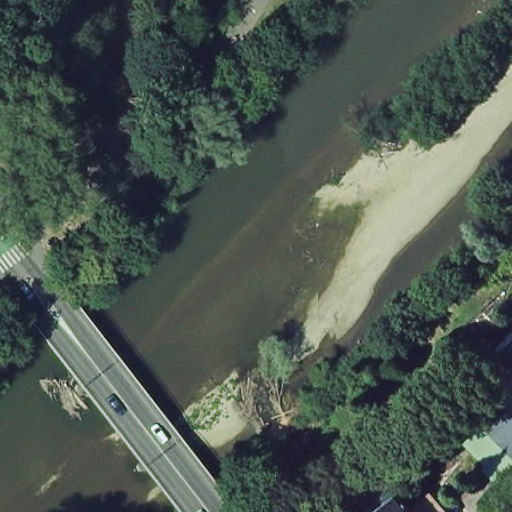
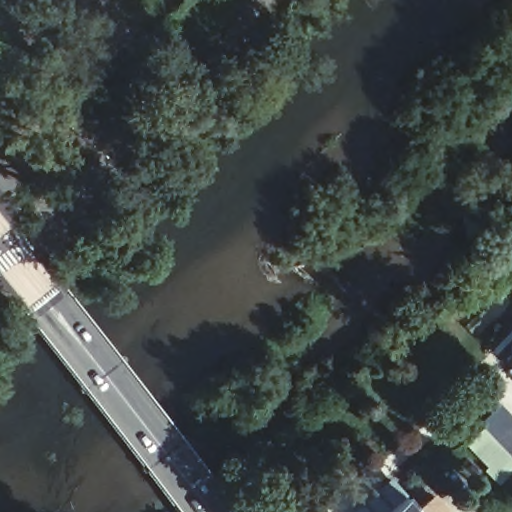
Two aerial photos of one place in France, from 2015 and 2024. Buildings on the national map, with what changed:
unchanged [(507,353),(503,349),(512,339),(512,375),(499,362),(507,353)]
unchanged [(512,409),(512,445),(490,422),(507,404),(512,409)]
unchanged [(435,492),(447,505),(439,512),(387,512),(412,491),(422,503),(435,492)]

